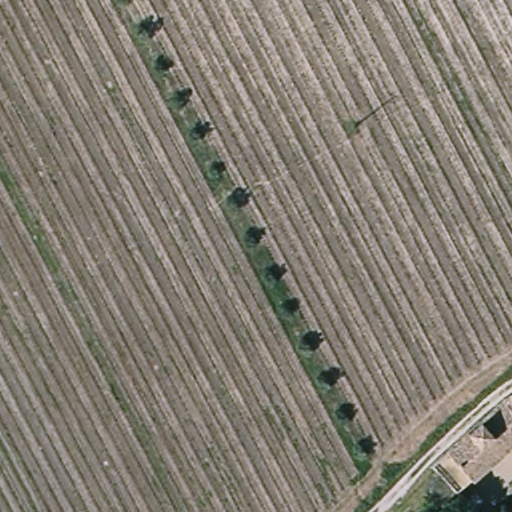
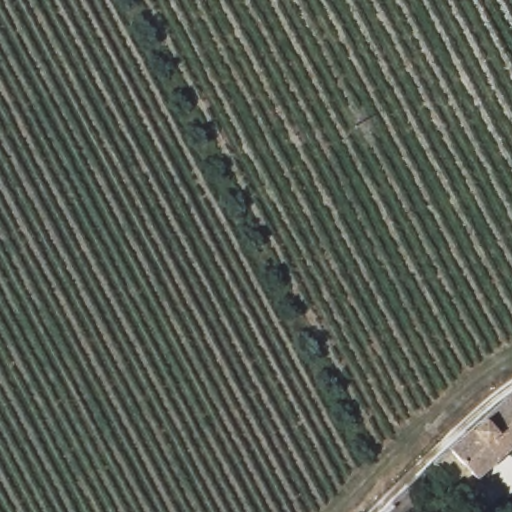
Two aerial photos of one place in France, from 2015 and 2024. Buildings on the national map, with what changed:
unchanged [(434,469),(432,465),(486,414),(505,398),(512,393),(512,440),(456,490),(434,469)]

